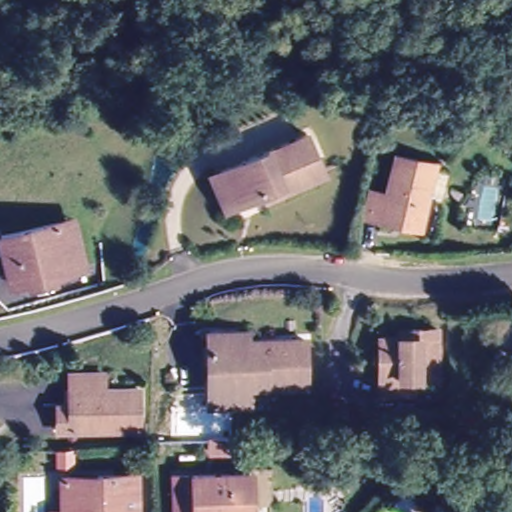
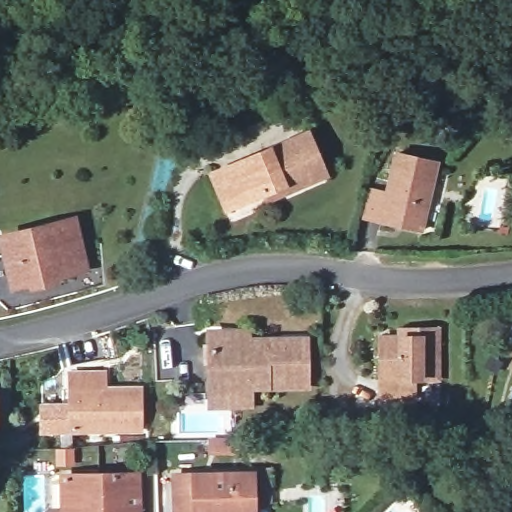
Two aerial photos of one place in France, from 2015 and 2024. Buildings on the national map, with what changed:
unchanged [(260,195),(235,206),(221,212),(206,177),(220,170),(303,135),(321,177),(281,194),(264,202),(260,195)]
unchanged [(425,232),(373,220),(379,193),(392,197),(402,158),(439,167),(425,232)]
unchanged [(70,225),(82,274),(23,289),(11,239),(70,225)]
unchanged [(437,380),(414,380),(414,395),(378,394),(378,336),(399,336),(399,327),(414,327),(437,328),(437,380)]
unchanged [(211,406),(211,387),(212,341),(212,331),(252,330),(252,340),(306,339),(307,388),(252,388),(252,406),(211,406)]
unchanged [(55,411),(71,411),(71,379),(108,378),(107,396),(140,395),(140,436),(71,436),(55,436),(55,411)]
unchanged [(20,447),(19,461),(0,459),(1,446),(20,447)]
unchanged [(133,475),(133,512),(62,512),(62,471),(133,475)]
unchanged [(246,475),(271,475),(272,505),(247,505),(247,512),(172,512),(170,478),(246,475)]

